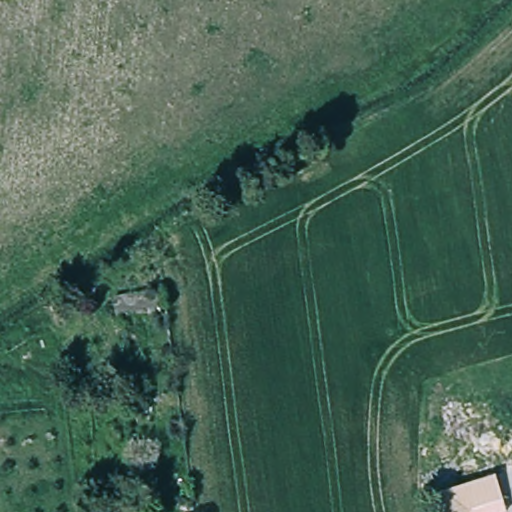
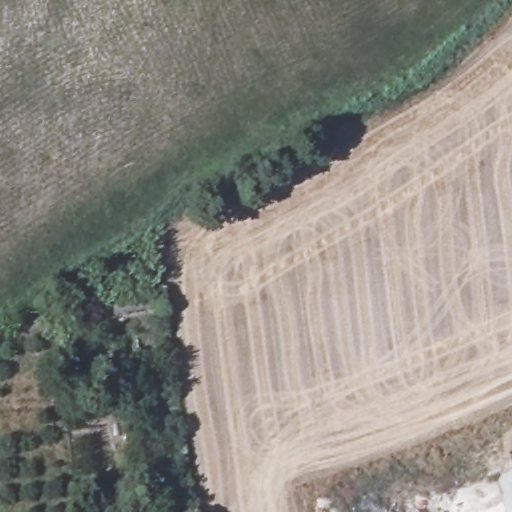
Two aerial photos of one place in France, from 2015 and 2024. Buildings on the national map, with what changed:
unchanged [(113,295),(158,292),(160,308),(116,313),(113,295)]
demolished [(501,475),(509,500),(475,510),(475,512),(445,512),(439,495),(501,475)]

